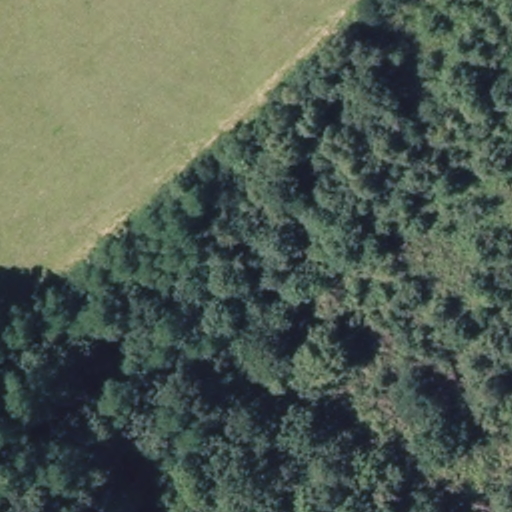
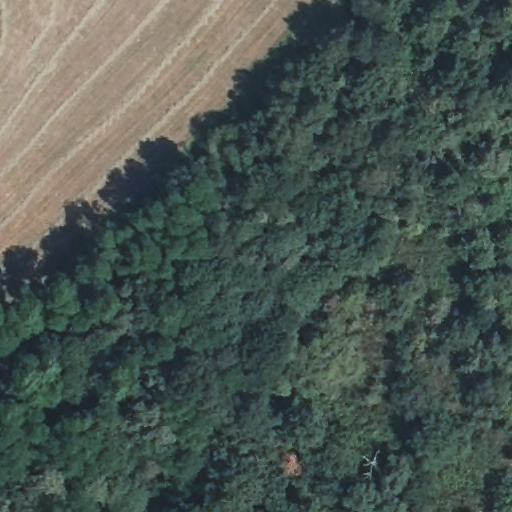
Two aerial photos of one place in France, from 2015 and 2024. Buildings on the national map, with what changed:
[]

